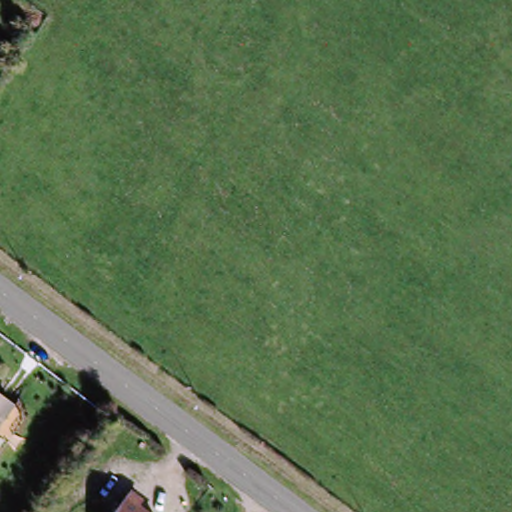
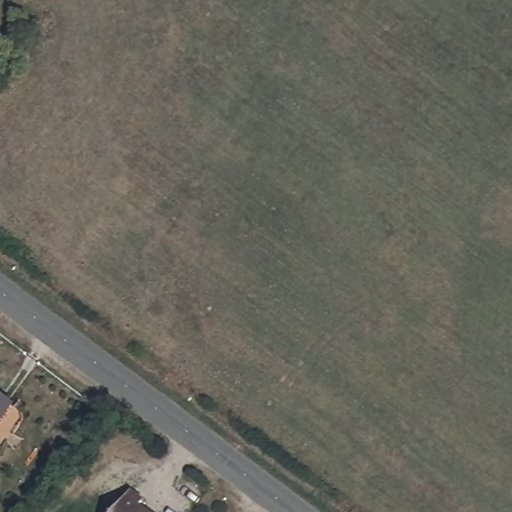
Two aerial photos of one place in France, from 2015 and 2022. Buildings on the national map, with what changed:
unchanged [(13,405),(0,423),(0,395),(13,405)]
unchanged [(143,502),(138,509),(142,512),(118,512),(131,494),(143,502)]

